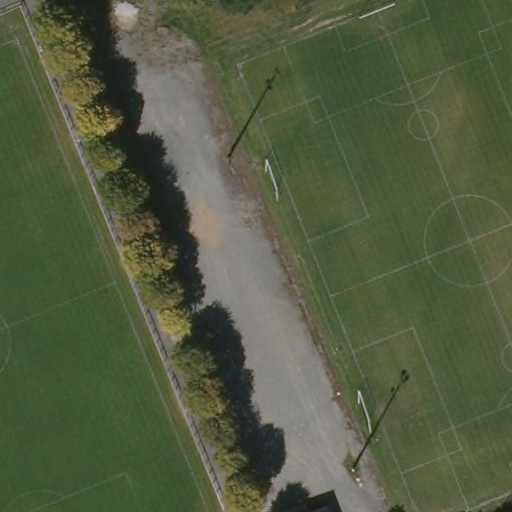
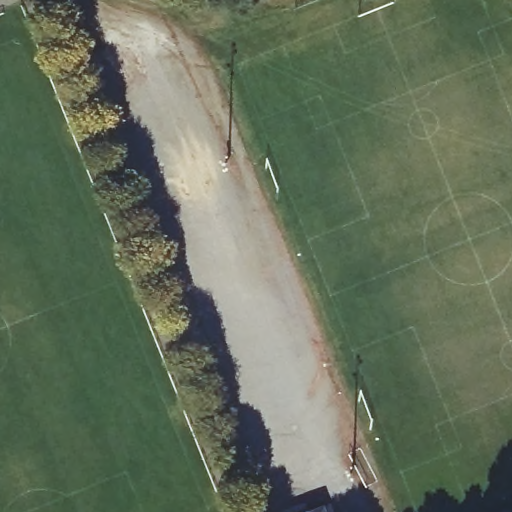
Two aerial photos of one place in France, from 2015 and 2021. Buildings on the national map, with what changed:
unchanged [(327,512),(326,512),(327,511),(327,512)]

